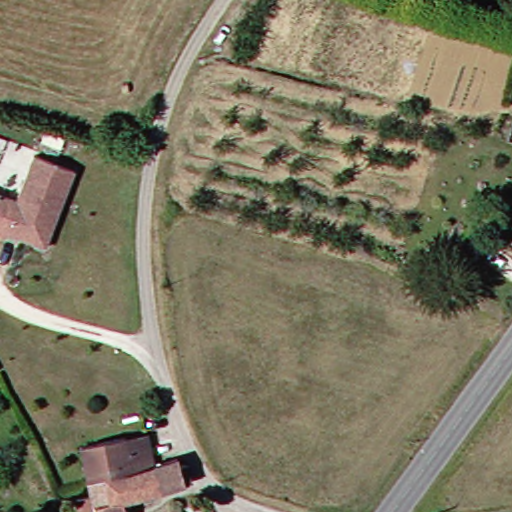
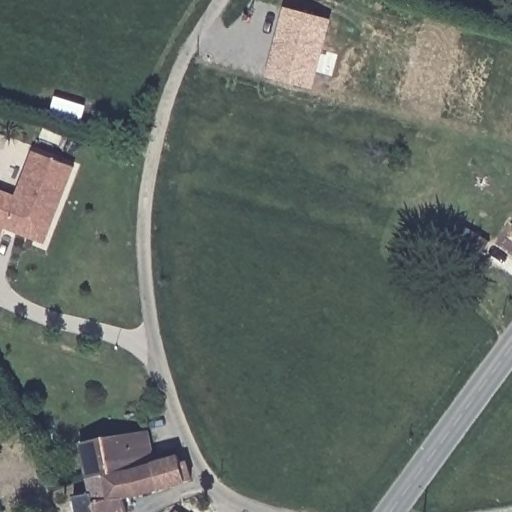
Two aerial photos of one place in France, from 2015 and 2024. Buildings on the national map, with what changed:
new [(283,7),(331,20),(312,89),(265,76),(283,7)]
unchanged [(0,236),(0,200),(5,201),(22,154),(64,171),(51,206),(36,248),(27,245),(0,236)]
unchanged [(471,235),(490,243),(483,257),(465,248),(471,235)]
unchanged [(167,465),(172,464),(179,482),(147,489),(110,497),(82,502),(77,485),(67,444),(120,432),(132,429),(136,441),(141,464),(164,457),(167,465)]
unchanged [(110,497),(113,512),(66,512),(60,488),(77,485),(82,502),(110,497)]

